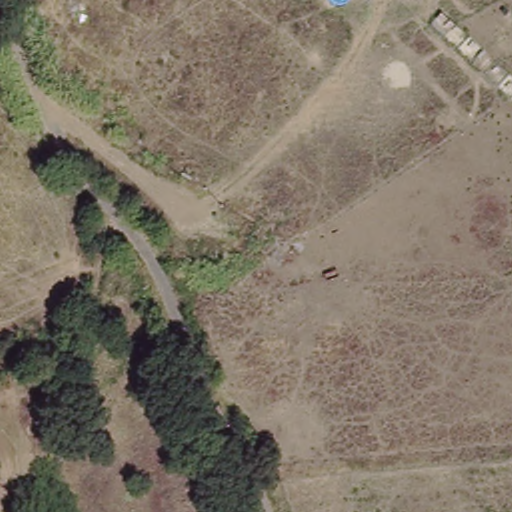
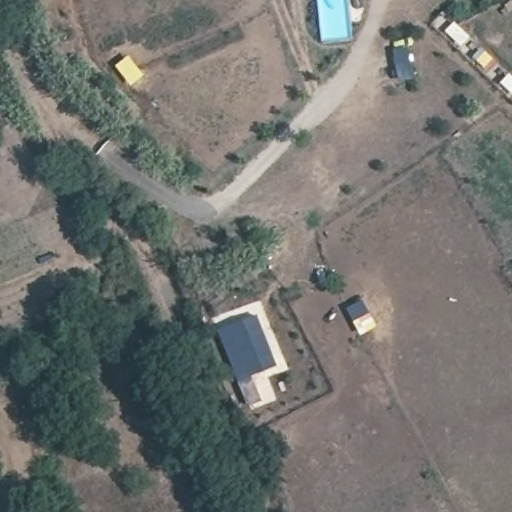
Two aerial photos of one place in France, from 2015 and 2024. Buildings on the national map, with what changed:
new [(362,299),(377,326),(361,334),(346,307),(362,299)]
new [(256,314),(278,366),(253,377),(264,402),(248,407),(218,329),(256,314)]

